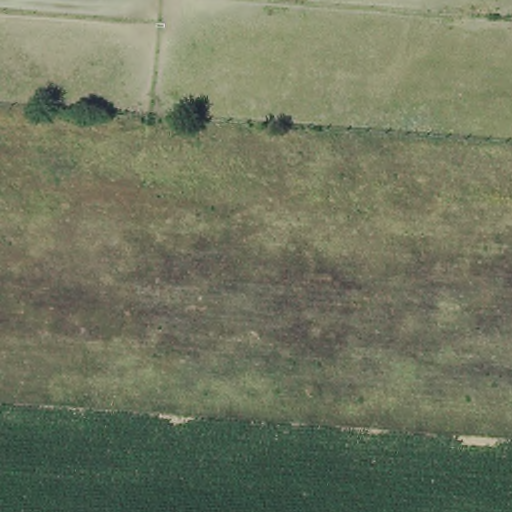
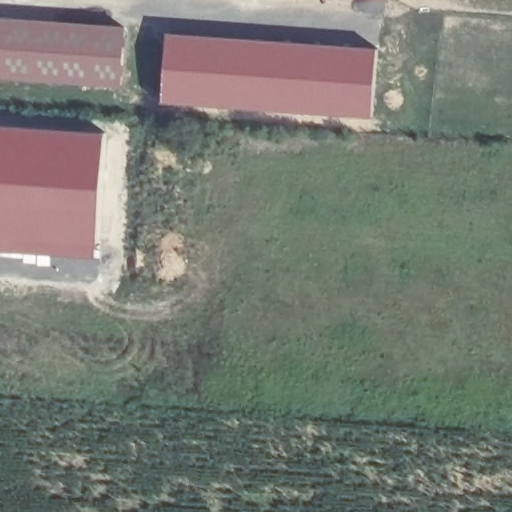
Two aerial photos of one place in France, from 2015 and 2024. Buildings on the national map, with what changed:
new [(121,86),(0,78),(0,17),(126,26),(121,86)]
new [(375,49),(371,116),(162,103),(167,34),(375,49)]
new [(101,136),(95,257),(0,250),(0,128),(101,136)]

